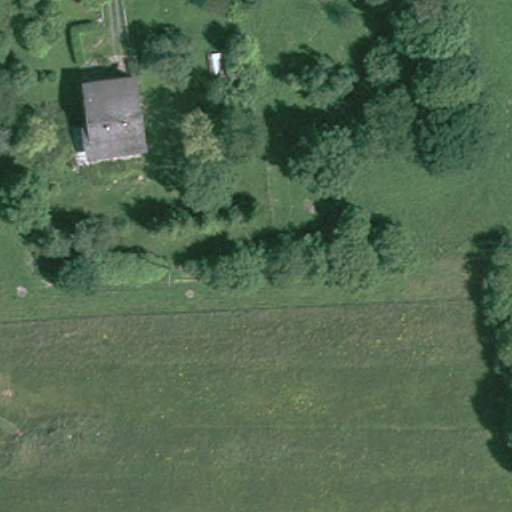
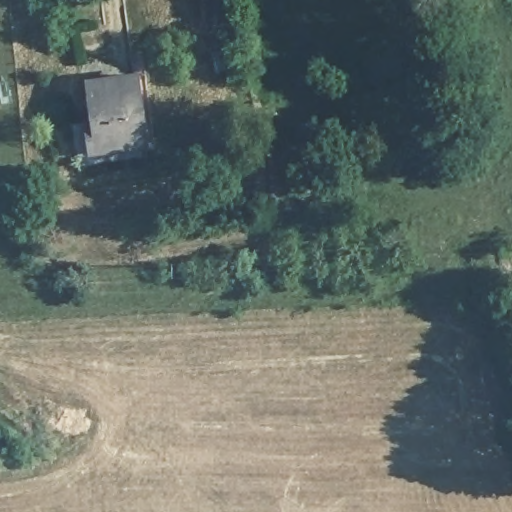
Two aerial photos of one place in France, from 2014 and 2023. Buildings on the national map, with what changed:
unchanged [(145,144),(91,151),(88,121),(93,120),(89,82),(136,75),(145,144)]

